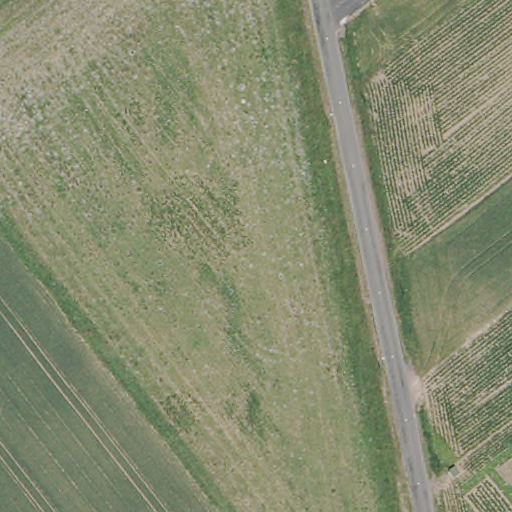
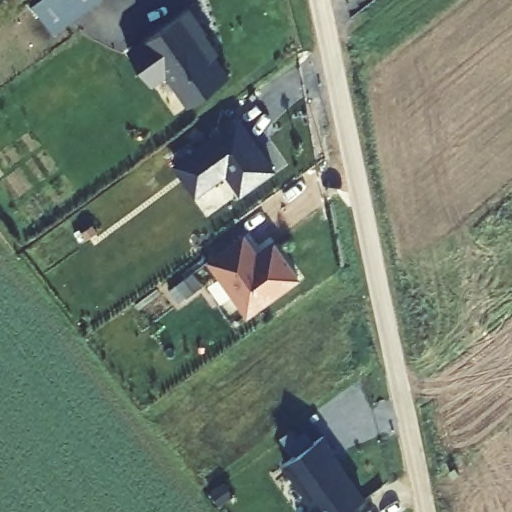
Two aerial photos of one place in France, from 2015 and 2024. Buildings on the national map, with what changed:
new [(55,29),(35,0),(36,0),(96,0),(55,29)]
new [(208,36),(203,40),(232,79),(192,107),(170,75),(154,86),(131,54),(190,12),(208,36)]
new [(242,194),(227,175),(197,197),(172,163),(240,116),(277,168),(242,194)]
new [(302,277),(248,317),(207,260),(245,232),(259,251),(275,240),(302,277)]
new [(327,434),(337,449),(335,450),(369,497),(348,512),(323,512),(287,462),(327,434)]
new [(354,512),(348,512),(352,509),(354,512)]

